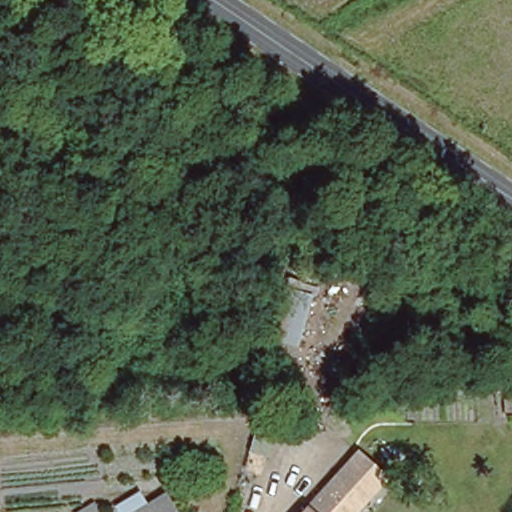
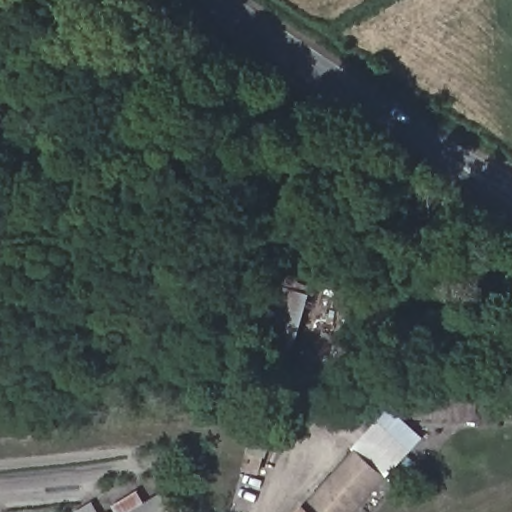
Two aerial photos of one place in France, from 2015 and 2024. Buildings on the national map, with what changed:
unchanged [(295,345),(273,337),(288,288),(311,295),(295,345)]
new [(383,483),(353,456),(358,451),(353,447),(392,407),(425,437),(383,483)]
unchanged [(264,458),(259,471),(247,468),(251,455),(264,458)]
unchanged [(356,512),(302,512),(353,456),(383,483),(356,512)]
unchanged [(134,493),(143,505),(161,492),(175,512),(114,512),(111,509),(134,493)]
unchanged [(95,512),(86,512),(92,507),(95,512)]

